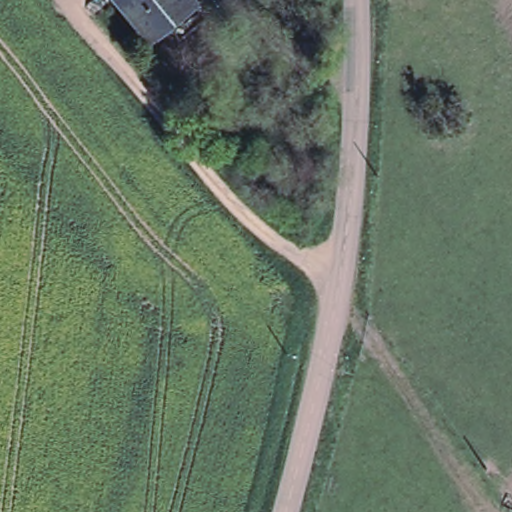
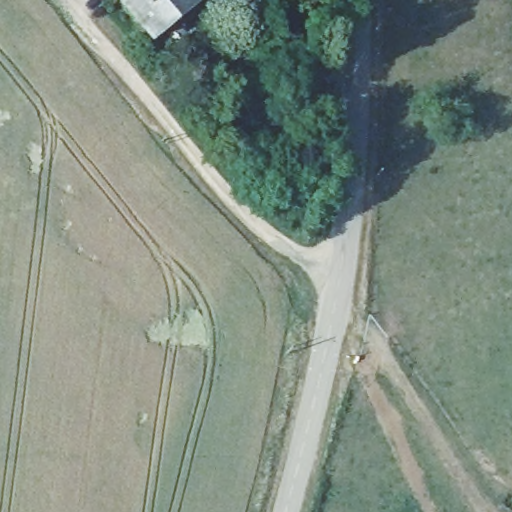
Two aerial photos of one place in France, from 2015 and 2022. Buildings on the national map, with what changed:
unchanged [(192,4),(150,39),(118,0),(188,0),(192,4)]

